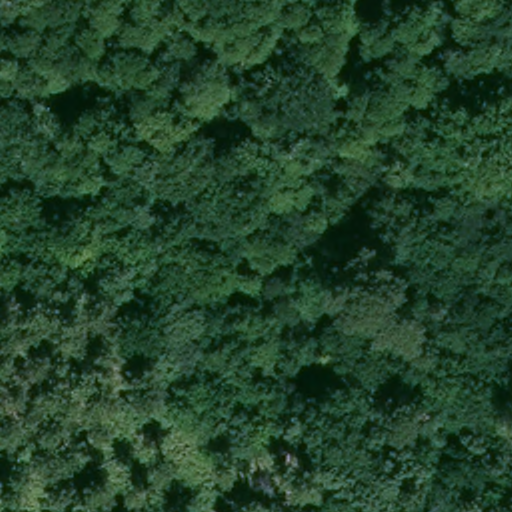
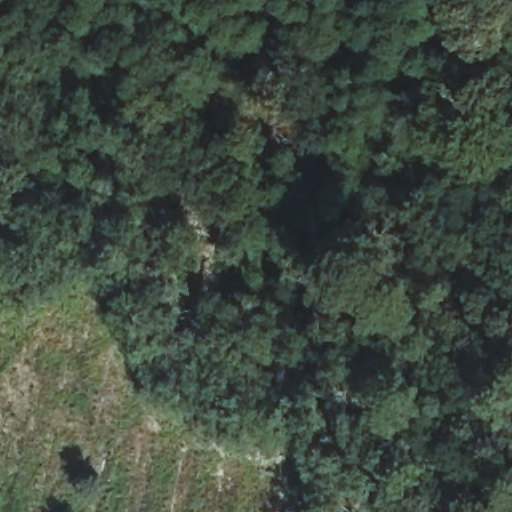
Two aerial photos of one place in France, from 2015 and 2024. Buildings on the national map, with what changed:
[]

